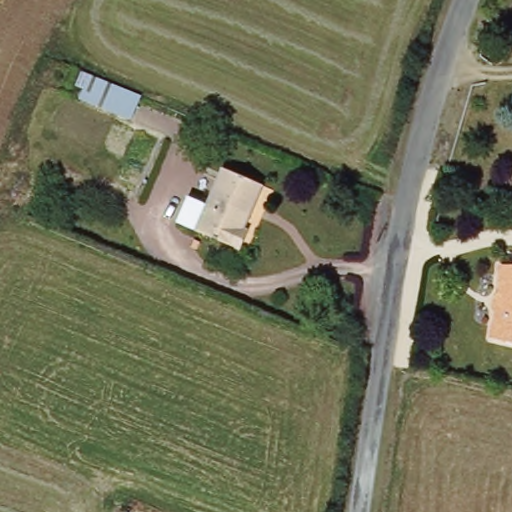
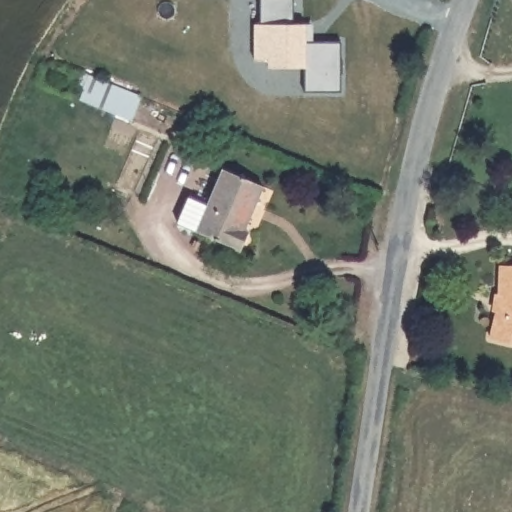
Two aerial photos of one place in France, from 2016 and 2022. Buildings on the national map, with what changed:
new [(341,40),(341,59),(342,58),(342,71),(340,71),(340,90),(303,90),(303,66),(268,65),(268,58),(254,58),(254,22),(259,22),(259,0),(293,0),(293,7),(293,22),(305,22),(312,22),(312,40),(341,40)]
unchanged [(84,88),(74,84),(83,69),(145,96),(133,121),(81,98),(84,88)]
unchanged [(245,230),(252,234),(243,252),(176,222),(187,193),(207,200),(221,169),(263,187),(245,230)]
unchanged [(501,294),(502,262),(512,263),(512,340),(487,332),(501,294)]

